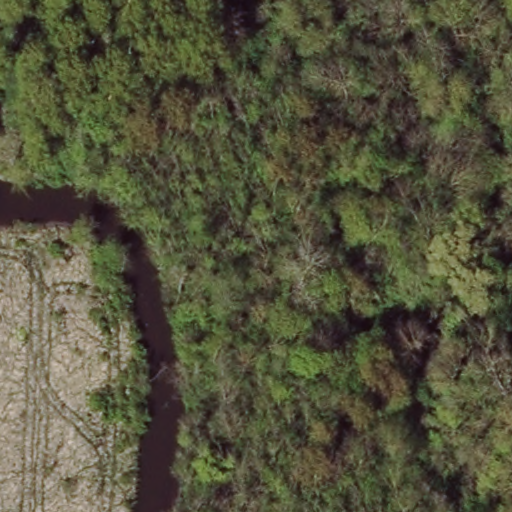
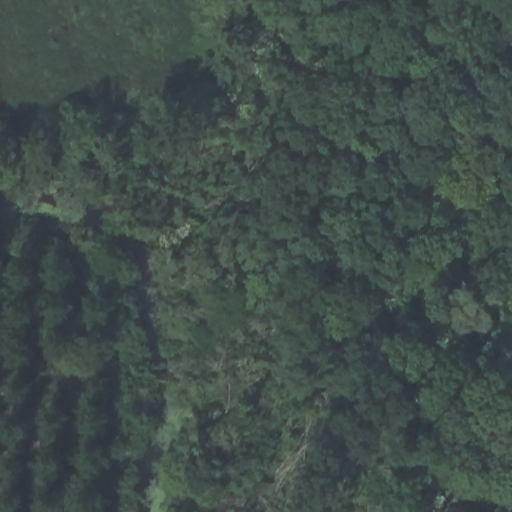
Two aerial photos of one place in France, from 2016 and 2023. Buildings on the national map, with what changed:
[]

